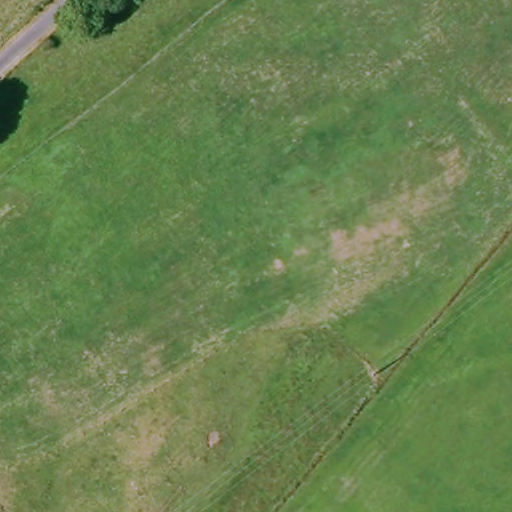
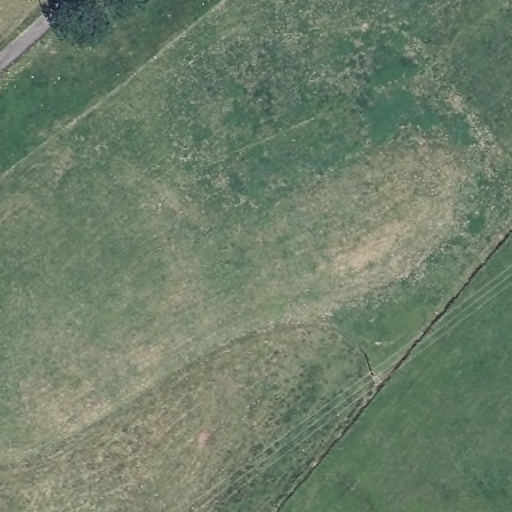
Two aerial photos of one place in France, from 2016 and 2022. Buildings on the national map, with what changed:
[]

